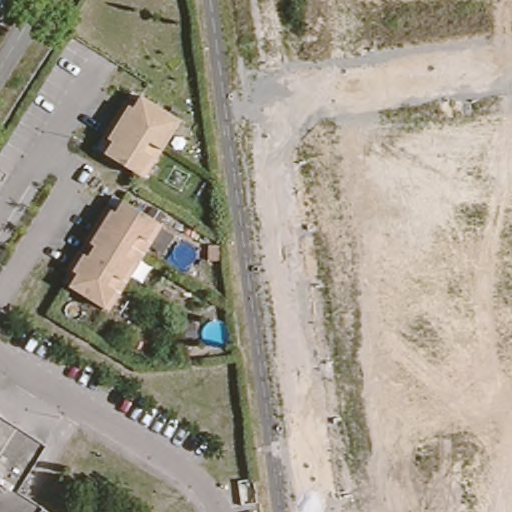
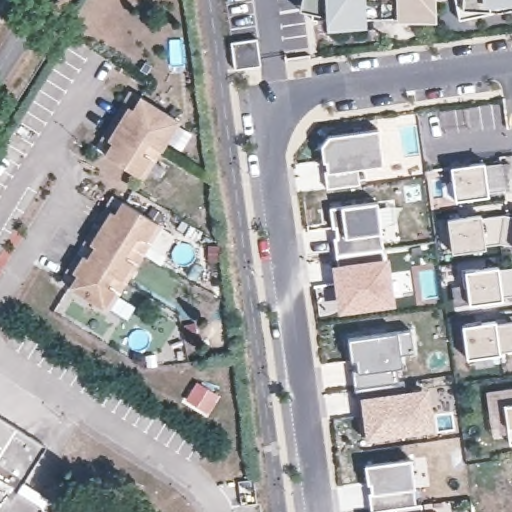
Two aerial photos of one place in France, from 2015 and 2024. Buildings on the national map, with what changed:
new [(432,0),(432,6),(432,16),(314,21),(314,14),(301,12),(304,0),(432,0)]
new [(457,0),(512,0),(512,1),(459,13),(457,0)]
new [(512,11),(461,21),(459,13),(512,1),(512,11)]
new [(229,42),(255,39),(259,66),(234,69),(229,42)]
unchanged [(110,133),(125,109),(129,101),(139,107),(145,98),(159,107),(184,123),(165,152),(147,180),(108,155),(114,145),(105,140),(110,133)]
new [(320,141),(325,135),(378,128),(385,166),(359,170),(360,184),(326,189),(320,146),(320,141)]
new [(483,164),(488,194),(453,200),(450,168),(483,164)]
unchanged [(72,259),(105,208),(109,200),(119,206),(125,197),(164,222),(146,250),(127,279),(109,307),(70,282),(77,272),(67,266),(72,259)]
new [(377,203),(383,249),(381,249),(336,255),(334,239),(337,239),(335,229),(332,229),(330,209),(377,203)]
new [(512,214),(512,248),(486,247),(452,254),(446,220),(479,215),(512,214)]
new [(381,249),(389,300),(343,307),(340,283),(342,282),(341,273),(339,273),(336,255),(381,249)]
new [(499,272),(512,268),(512,294),(502,295),(502,299),(468,304),(463,273),(498,265),(499,272)]
new [(495,324),(512,323),(512,348),(500,349),(501,354),(467,357),(462,325),(495,319),(495,324)]
new [(354,372),(359,371),(357,362),(352,362),(350,339),(407,332),(410,355),(405,356),(407,368),(399,369),(401,384),(356,389),(354,372)]
new [(401,384),(405,383),(407,399),(425,397),(429,428),(362,437),(359,417),(369,416),(368,406),(358,407),(356,389),(401,384)]
new [(508,427),(505,404),(512,403),(512,441),(510,442),(508,427)]
new [(360,417),(358,407),(368,406),(369,416),(360,417)]
unchanged [(52,447),(23,492),(49,509),(47,511),(47,512),(0,512),(0,413),(52,447)]
new [(412,457),(417,506),(370,512),(363,464),(412,457)]
new [(437,511),(437,512),(424,512),(437,511)]

